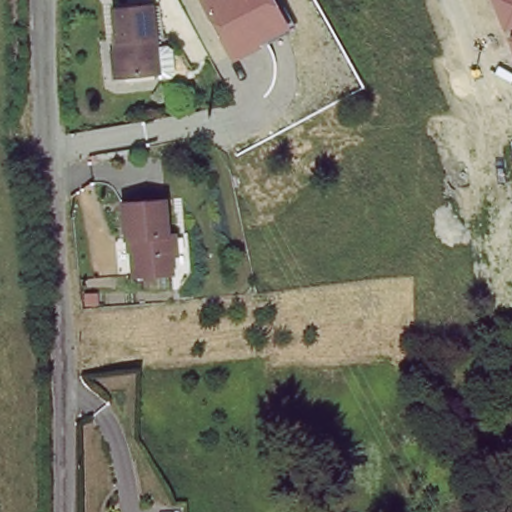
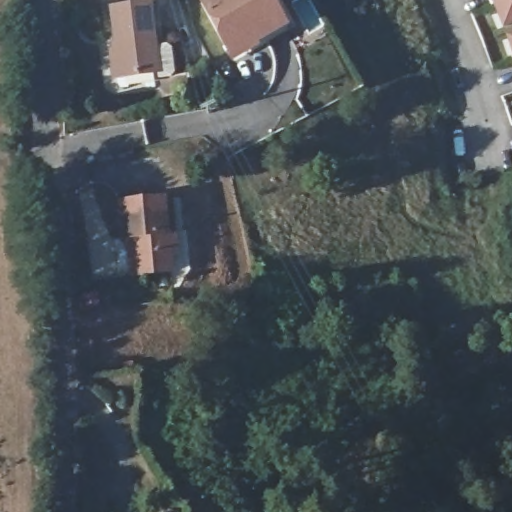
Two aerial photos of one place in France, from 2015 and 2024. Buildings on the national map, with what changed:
unchanged [(289,26),(260,43),(261,47),(233,61),(200,0),(275,0),(289,26)]
unchanged [(504,29),(492,0),(512,0),(512,25),(504,29)]
unchanged [(112,54),(119,52),(113,15),(150,9),(160,76),(124,81),(116,82),(112,54)]
unchanged [(507,37),(512,35),(512,52),(507,37)]
unchanged [(167,197),(172,232),(177,232),(180,252),(177,253),(180,270),(140,276),(135,240),(131,240),(125,204),(167,197)]

